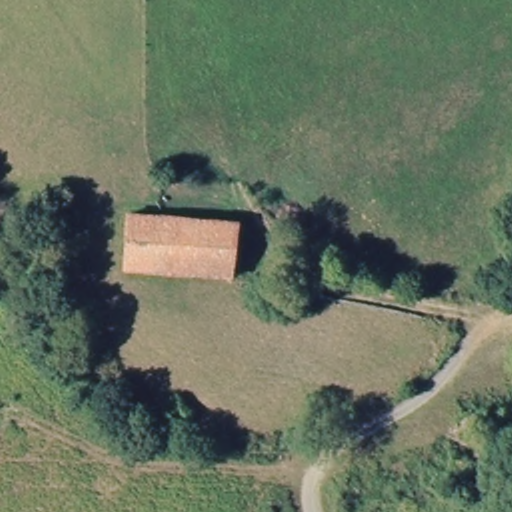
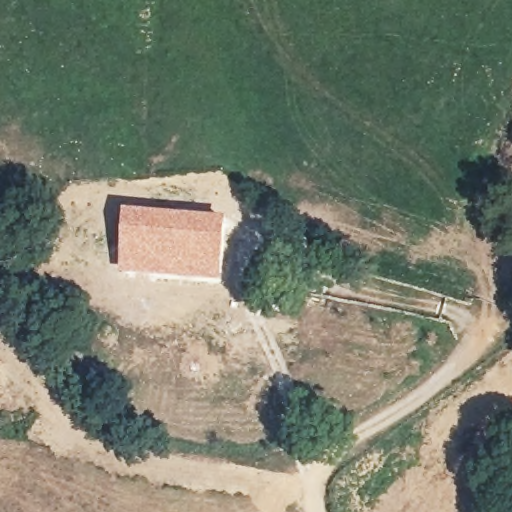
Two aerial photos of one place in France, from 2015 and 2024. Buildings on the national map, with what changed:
unchanged [(120,272),(126,216),(232,225),(228,280),(120,272)]

